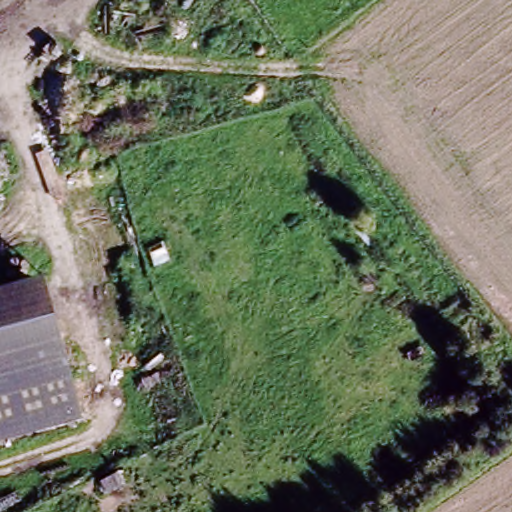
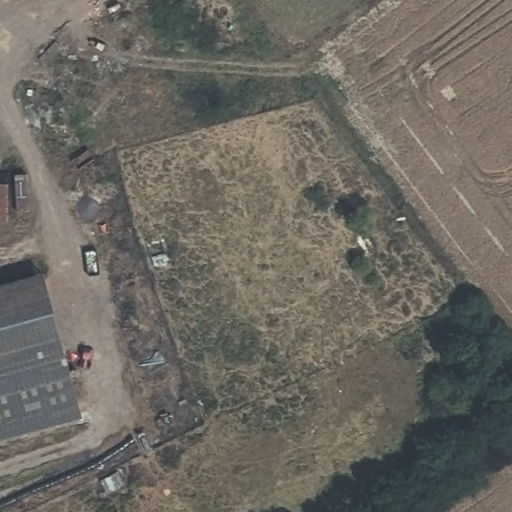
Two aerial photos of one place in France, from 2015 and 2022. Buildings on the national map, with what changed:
unchanged [(0,427),(0,290),(40,279),(74,407),(0,427)]
unchanged [(78,422),(0,443),(0,427),(74,407),(78,422)]

